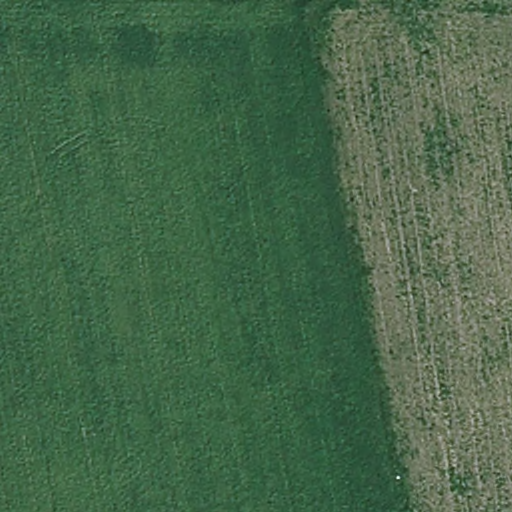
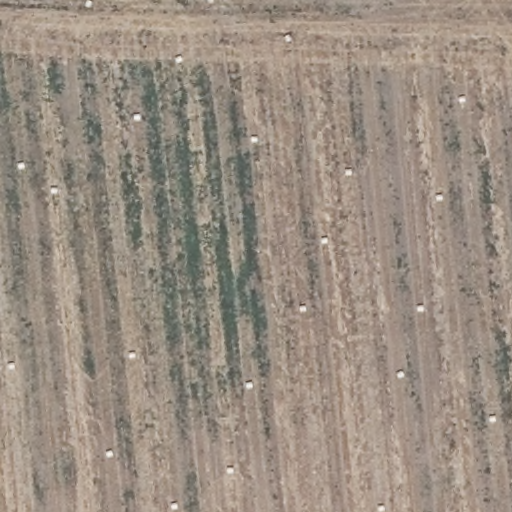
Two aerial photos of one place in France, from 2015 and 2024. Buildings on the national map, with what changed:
[]

